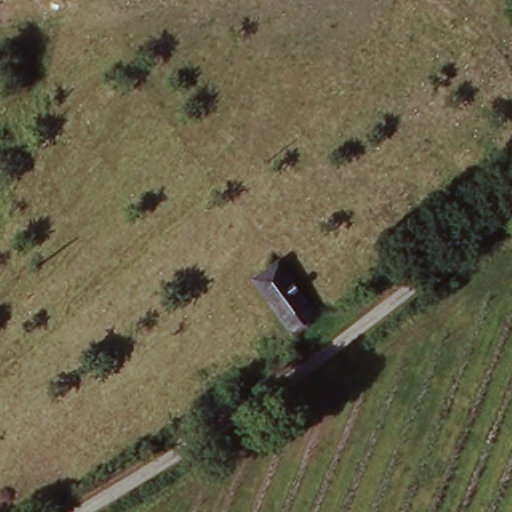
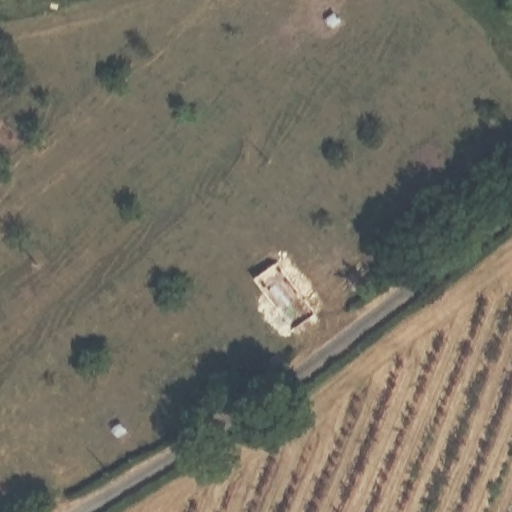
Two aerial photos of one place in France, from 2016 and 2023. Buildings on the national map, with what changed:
unchanged [(280,267),(315,316),(295,334),(257,283),(280,267)]

